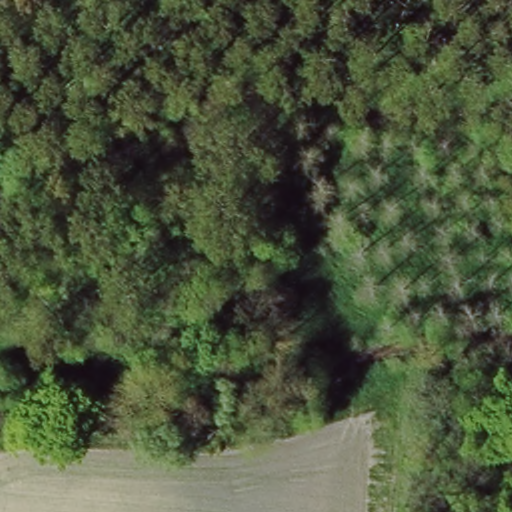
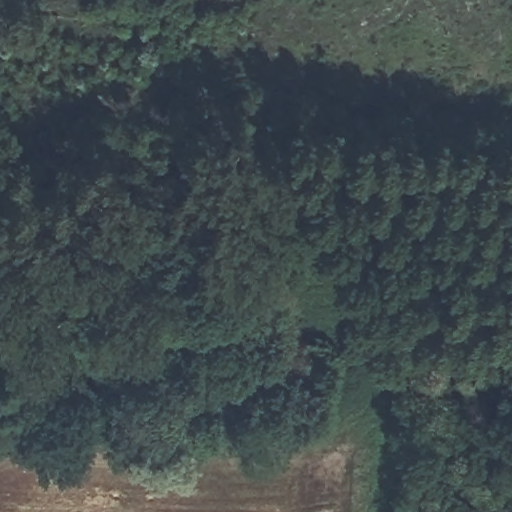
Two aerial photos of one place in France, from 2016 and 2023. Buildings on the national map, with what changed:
[]

